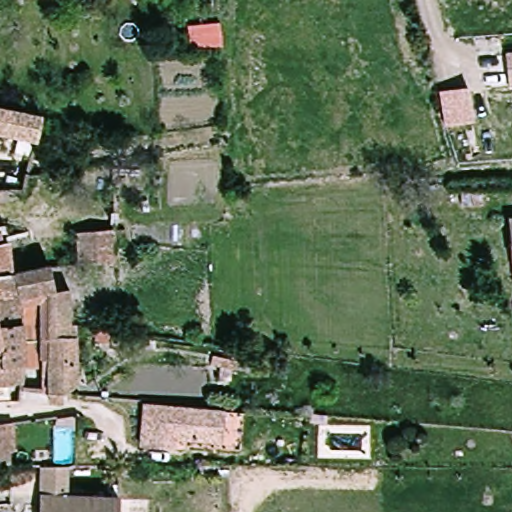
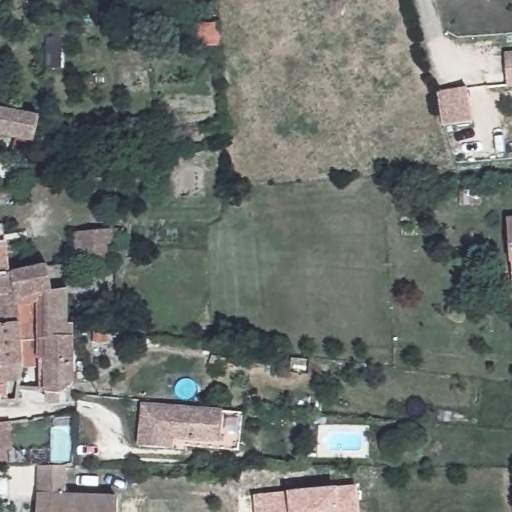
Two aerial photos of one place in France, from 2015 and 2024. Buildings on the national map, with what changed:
unchanged [(512,50),(512,82),(510,82),(508,50),(512,50)]
new [(442,128),(438,94),(467,90),(470,125),(442,128)]
unchanged [(26,146),(0,141),(0,111),(32,117),(26,146)]
unchanged [(146,170),(143,193),(113,191),(115,168),(146,170)]
unchanged [(509,220),(512,219),(512,257),(509,220)]
unchanged [(114,232),(115,264),(77,265),(75,235),(114,232)]
unchanged [(7,273),(0,275),(0,240),(3,250),(7,273)]
unchanged [(39,395),(38,362),(39,395),(31,395),(30,361),(29,326),(15,327),(0,327),(0,275),(7,273),(40,267),(46,293),(62,292),(64,329),(69,330),(67,382),(66,386),(63,389),(58,392),(55,394),(50,395),(50,404),(40,403),(39,395)]
unchanged [(16,360),(15,384),(0,386),(0,327),(15,327),(16,360)]
unchanged [(176,443),(175,453),(141,451),(144,410),(224,415),(223,442),(190,440),(190,445),(176,443)]
unchanged [(16,450),(11,451),(12,468),(0,468),(0,426),(14,425),(16,450)]
unchanged [(41,490),(42,463),(69,463),(67,492),(118,495),(117,512),(38,512),(40,490),(41,490)]
new [(255,512),(253,496),(290,493),(338,488),(357,485),(361,512),(255,512)]

